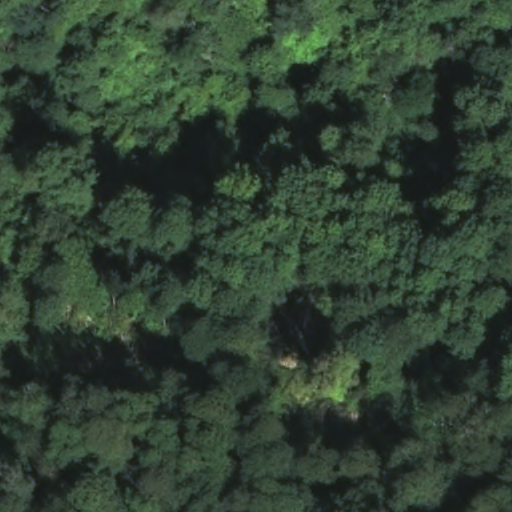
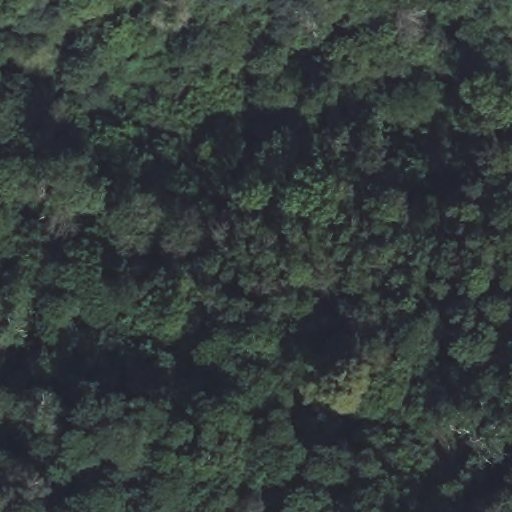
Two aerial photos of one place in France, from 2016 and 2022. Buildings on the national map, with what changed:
unchanged [(512,444),(482,436),(487,418),(512,425),(512,444)]

